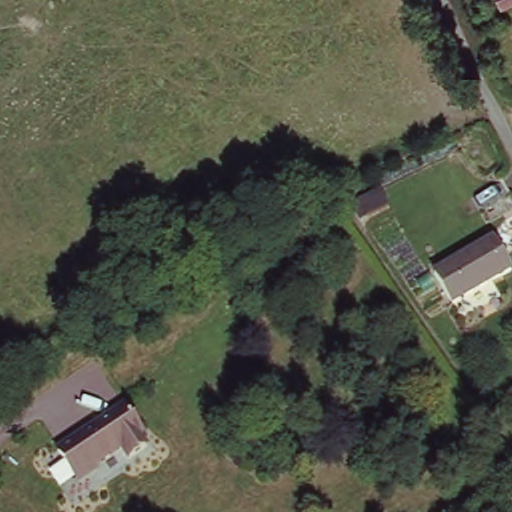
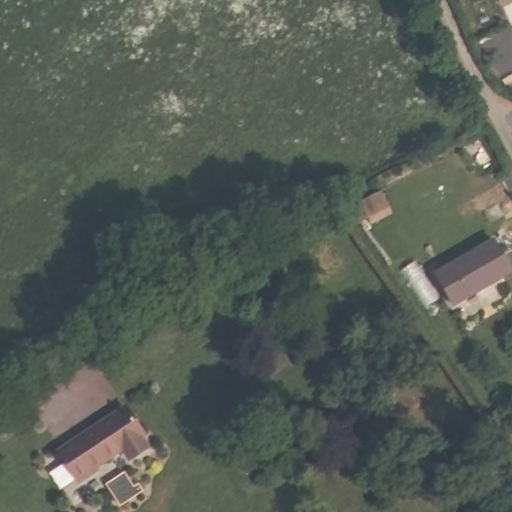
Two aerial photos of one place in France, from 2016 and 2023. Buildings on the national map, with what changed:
unchanged [(499,0),(512,0),(512,8),(506,11),(499,0)]
unchanged [(512,270),(452,302),(434,271),(495,236),(512,269),(512,270)]
unchanged [(118,399),(138,425),(136,427),(144,437),(126,451),(117,441),(91,460),(93,463),(75,477),(52,448),(118,399)]

